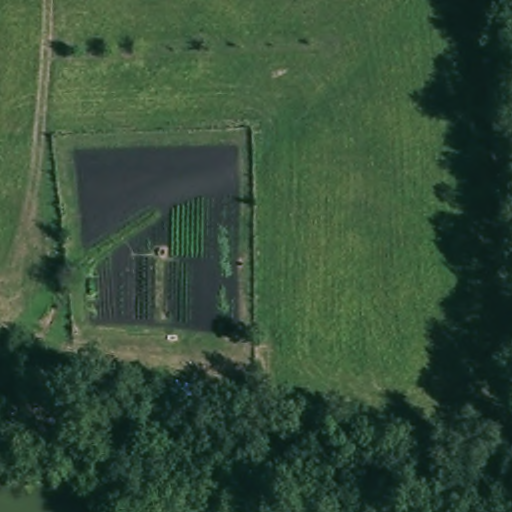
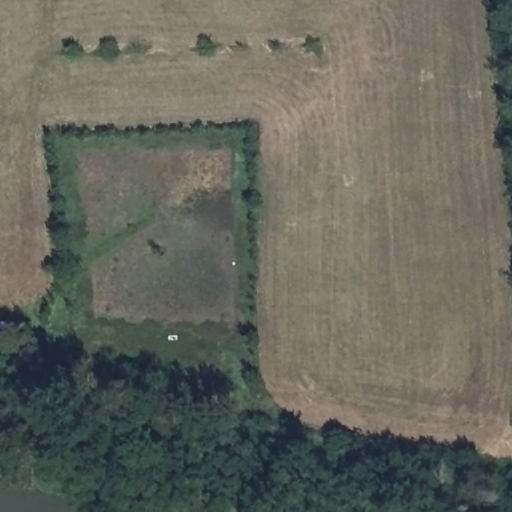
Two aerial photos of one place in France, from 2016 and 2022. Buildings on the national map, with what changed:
unchanged [(77,406),(76,419),(57,417),(58,405),(77,406)]

